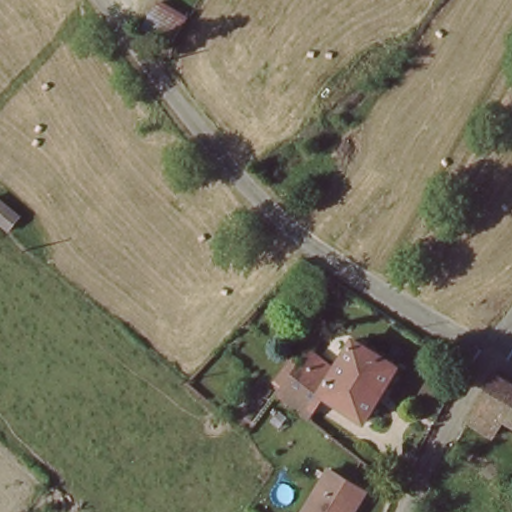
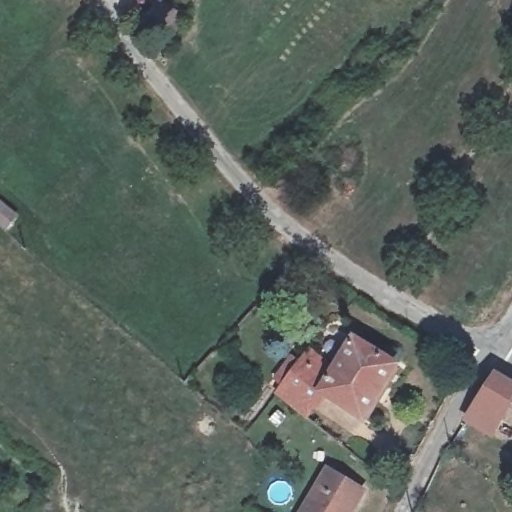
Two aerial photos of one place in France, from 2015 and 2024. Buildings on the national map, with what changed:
unchanged [(188,12),(167,48),(140,32),(149,16),(154,18),(167,0),(188,12)]
unchanged [(0,224),(0,200),(22,215),(10,230),(0,224)]
unchanged [(277,385),(303,356),(328,374),(361,337),(403,368),(364,412),(322,385),(305,405),(277,385)]
unchanged [(492,440),(459,424),(464,407),(496,371),(512,380),(512,423),(506,419),(492,440)]
unchanged [(356,488),(362,491),(354,507),(352,512),(304,512),(325,472),(356,488)]

